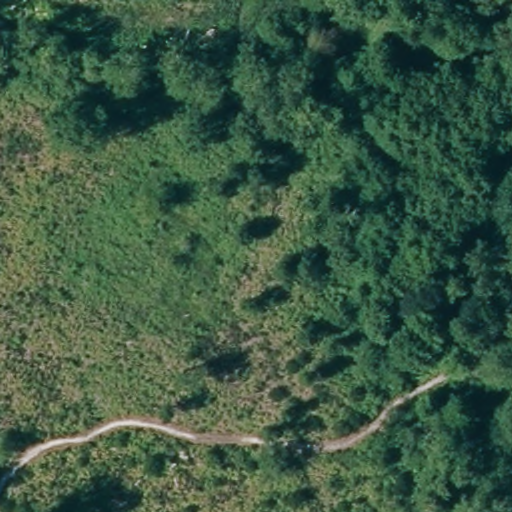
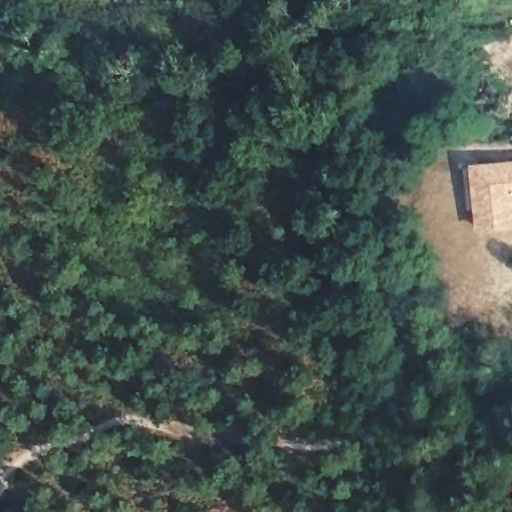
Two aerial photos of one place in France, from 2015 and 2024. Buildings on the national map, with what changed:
unchanged [(376,0),(390,0),(386,7),(376,0)]
new [(478,230),(473,165),(512,161),(512,227),(478,230)]

